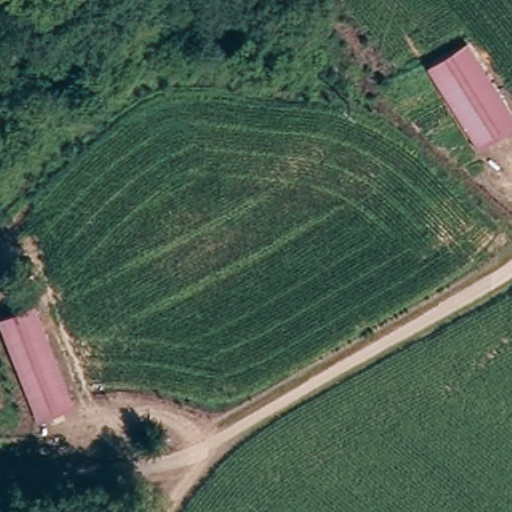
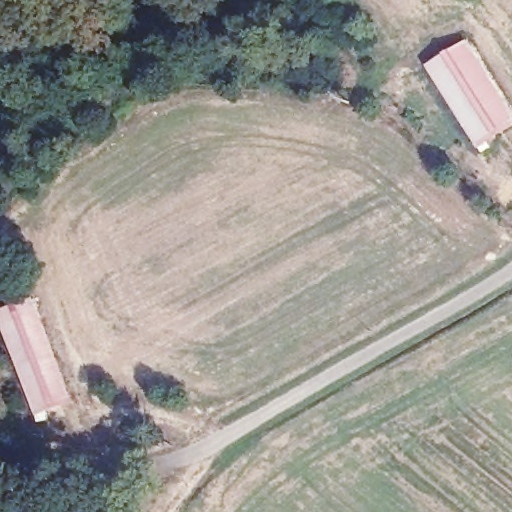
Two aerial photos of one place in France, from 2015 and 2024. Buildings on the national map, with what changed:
unchanged [(512,131),(477,149),(436,68),(478,47),(512,113),(512,131)]
unchanged [(70,404),(37,415),(3,315),(36,304),(70,404)]

